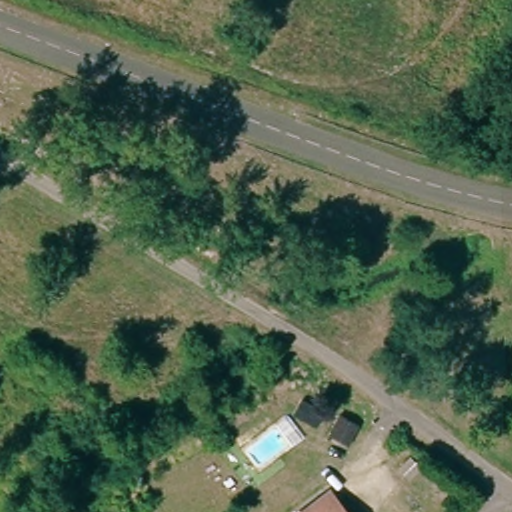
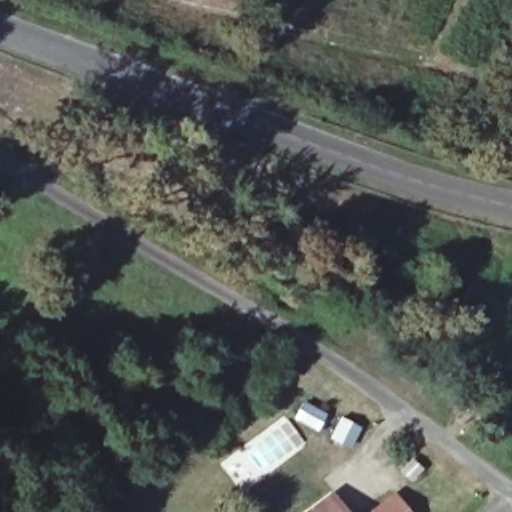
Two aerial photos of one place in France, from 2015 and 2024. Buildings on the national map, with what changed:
unchanged [(322,416),(315,429),(294,417),(301,403),(322,416)]
unchanged [(347,448),(329,437),(340,419),(358,429),(347,448)]
new [(395,490),(411,512),(367,512),(395,490)]
unchanged [(330,494),(338,504),(344,512),(307,512),(330,494)]

